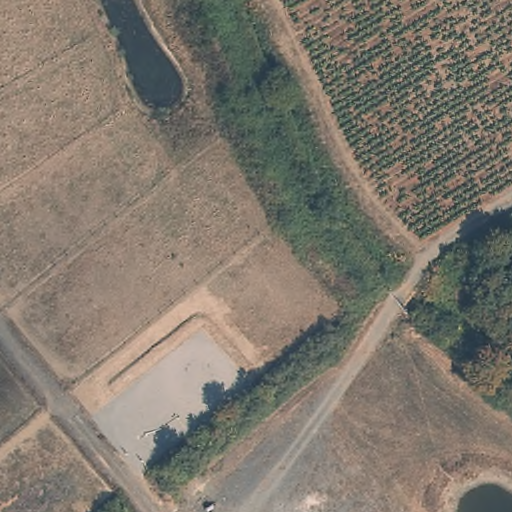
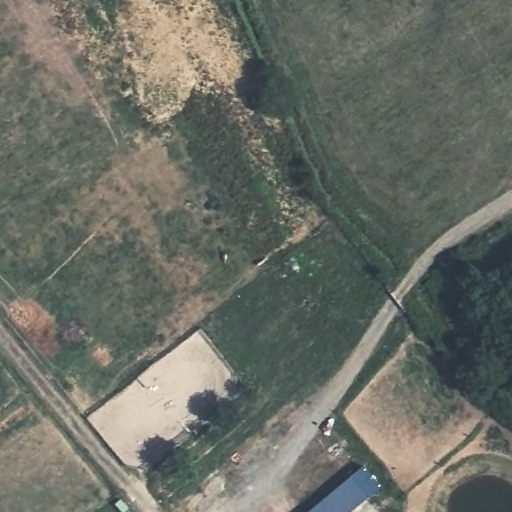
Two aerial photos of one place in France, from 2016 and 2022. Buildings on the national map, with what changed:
new [(381,487),(351,512),(310,512),(365,467),(381,487)]

